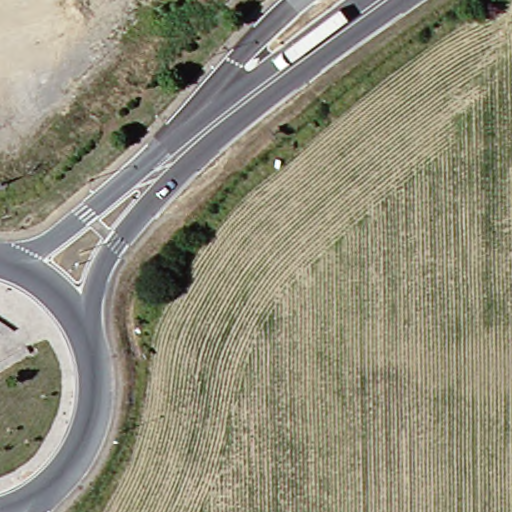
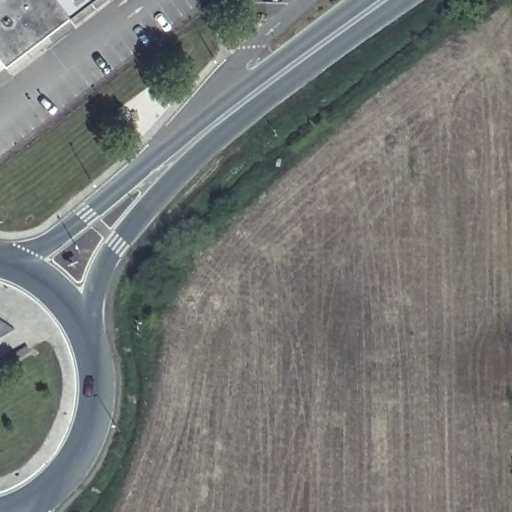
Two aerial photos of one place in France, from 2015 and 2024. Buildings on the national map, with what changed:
new [(6,67),(0,60),(0,0),(93,0),(69,17),(6,67)]

